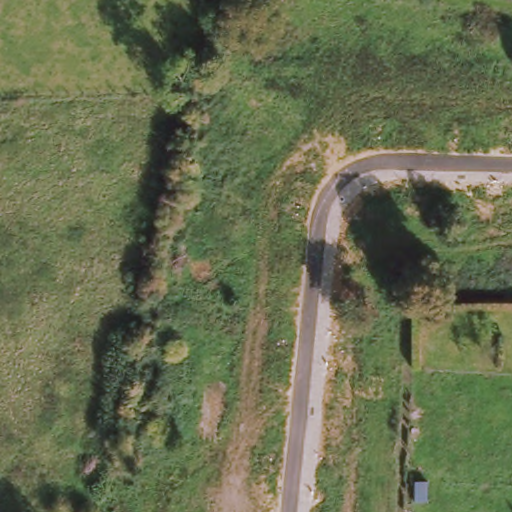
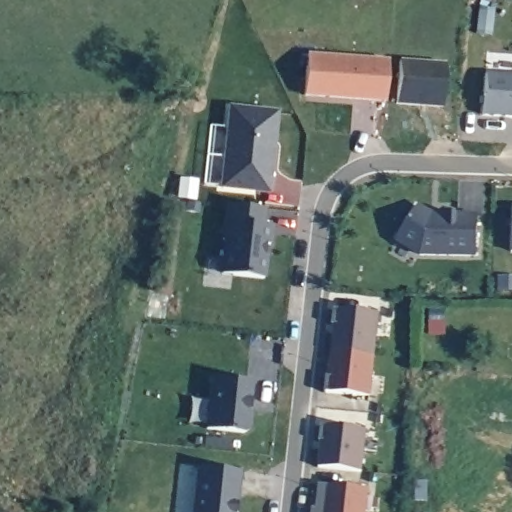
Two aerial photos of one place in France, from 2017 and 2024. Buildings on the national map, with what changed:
new [(388,59),(385,102),(305,95),(307,53),(388,59)]
new [(444,64),(441,107),(396,104),(399,63),(444,64)]
new [(512,75),(512,117),(482,114),(486,73),(512,75)]
new [(270,194),(218,189),(227,105),(279,111),(270,194)]
new [(264,208),(263,224),(270,225),(268,244),(265,244),(261,279),(222,274),(226,241),(223,240),(227,204),(264,208)]
new [(430,217),(475,217),(475,256),(420,254),(397,240),(417,207),(430,217)]
new [(510,252),(512,212),(512,252),(510,252)]
new [(326,392),(330,355),(332,356),(333,351),(330,351),(334,309),(378,314),(370,397),(348,394),(326,392)]
new [(251,399),(247,399),(246,409),(253,411),(251,430),(241,432),(204,428),(210,376),(253,381),(251,399)]
new [(361,471),(318,467),(322,426),(365,431),(361,471)]
new [(237,470),(234,512),(193,512),(197,466),(237,470)]
new [(368,489),(366,512),(314,512),(318,484),(347,486),(368,489)]

